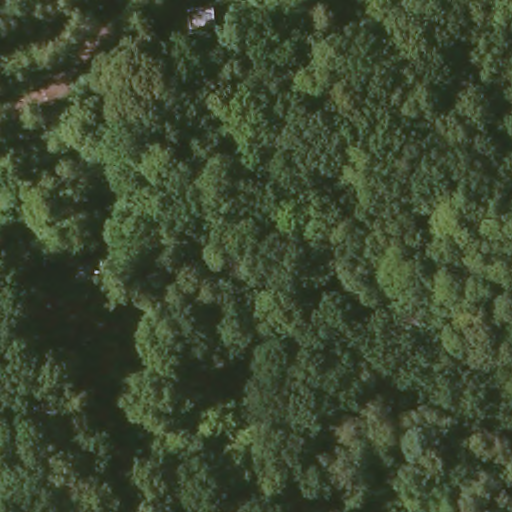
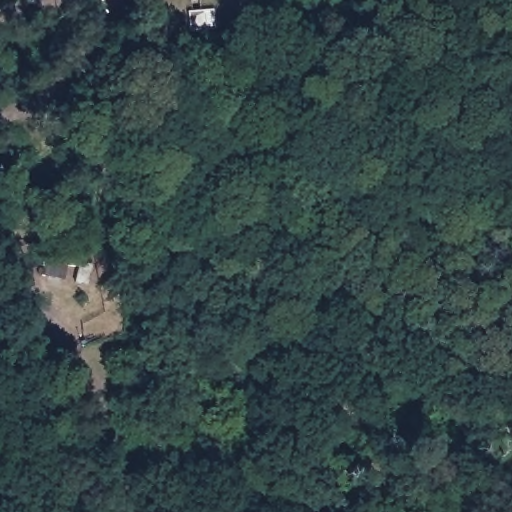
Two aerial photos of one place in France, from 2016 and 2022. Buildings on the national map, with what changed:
unchanged [(188,8),(217,9),(217,30),(190,30),(188,8)]
unchanged [(82,255),(82,261),(95,263),(90,285),(77,282),(78,267),(68,265),(65,278),(43,272),(48,247),(82,255)]

